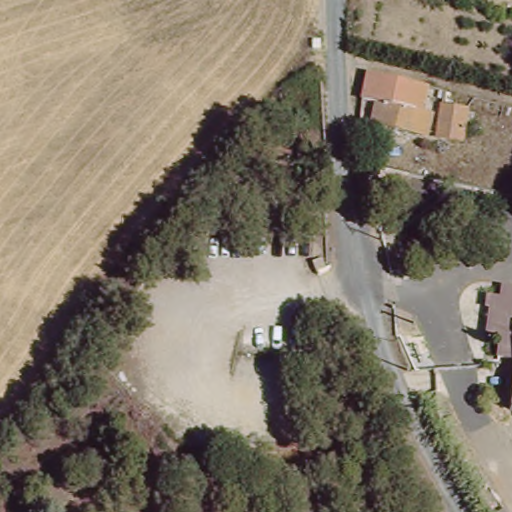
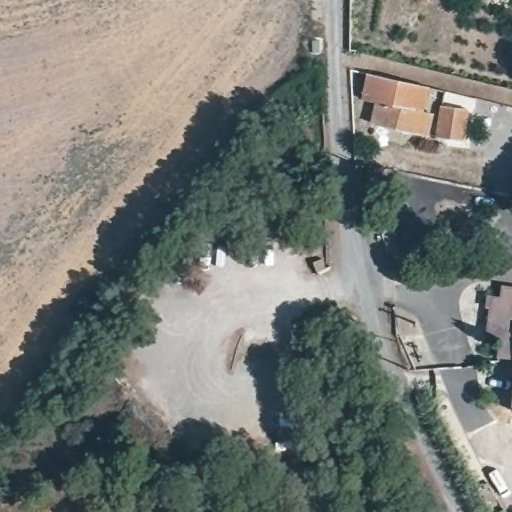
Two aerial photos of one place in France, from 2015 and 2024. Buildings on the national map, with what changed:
unchanged [(423,113),(433,114),(430,135),(374,125),(377,106),(364,103),(368,77),(428,89),(423,113)]
unchanged [(468,112),(463,142),(439,139),(444,108),(468,112)]
unchanged [(488,297),(499,298),(501,287),(512,288),(512,345),(483,342),(488,297)]
unchanged [(511,416),(512,405),(512,416),(511,416)]

